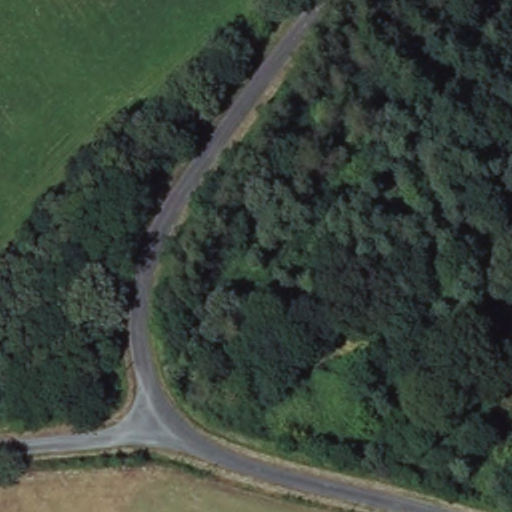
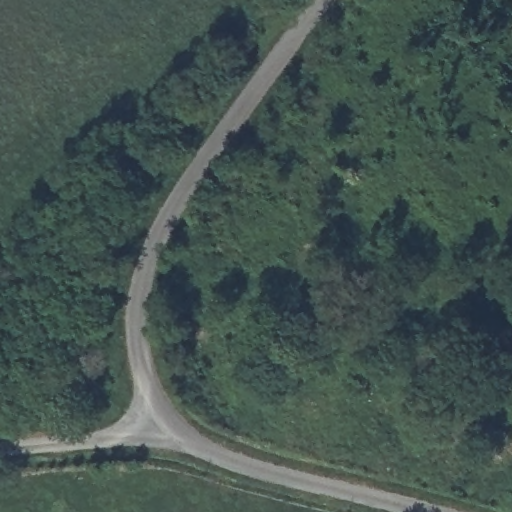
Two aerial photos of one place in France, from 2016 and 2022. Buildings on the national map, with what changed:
[]

